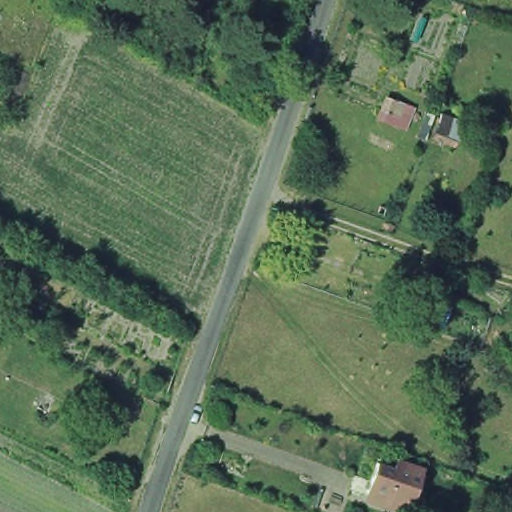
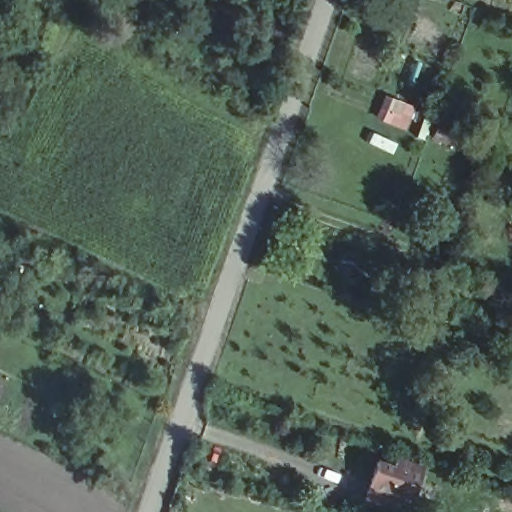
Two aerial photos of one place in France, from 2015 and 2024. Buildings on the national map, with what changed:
unchanged [(372,119),(382,95),(412,107),(404,133),(372,119)]
unchanged [(437,298),(434,306),(429,304),(413,300),(404,296),(407,287),(409,281),(419,285),(434,290),(432,295),(437,297),(437,298)]
unchanged [(344,491),(350,475),(365,480),(371,461),(387,466),(390,458),(415,467),(403,505),(402,511),(344,491)]

